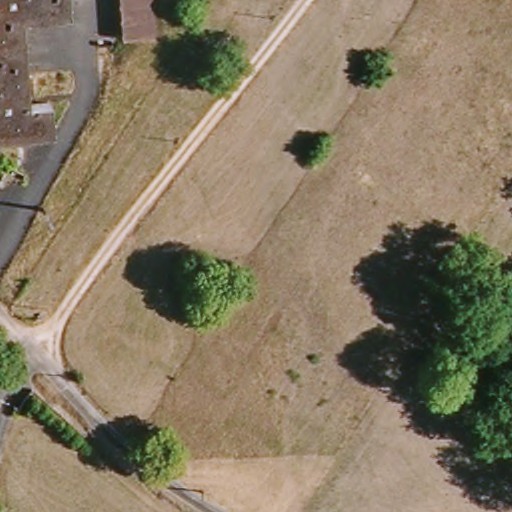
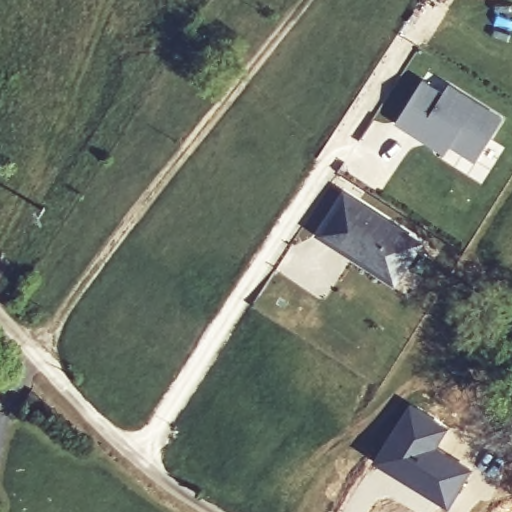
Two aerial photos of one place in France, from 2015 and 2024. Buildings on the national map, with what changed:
demolished [(0,137),(0,0),(68,0),(68,16),(22,17),(25,101),(45,100),(47,136),(0,137)]
demolished [(148,0),(149,41),(119,41),(117,0),(148,0)]
new [(422,80),(445,94),(451,85),(503,119),(477,160),(423,125),(418,135),(397,121),(422,80)]
new [(425,244),(397,287),(316,234),(343,192),(425,244)]
unchanged [(487,421),(495,400),(511,408),(502,427),(487,421)]
new [(408,402),(450,427),(439,444),(472,468),(448,507),(406,483),(371,460),(408,402)]

